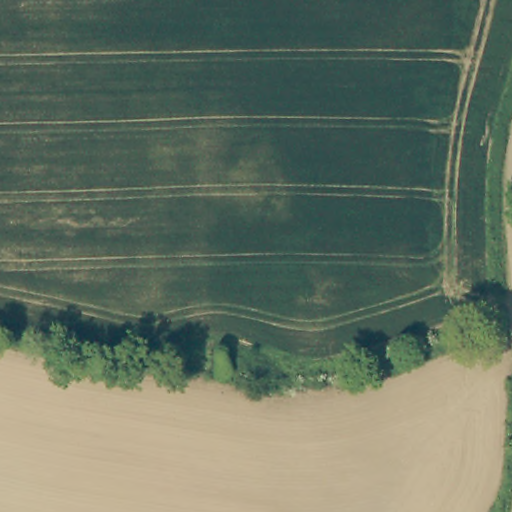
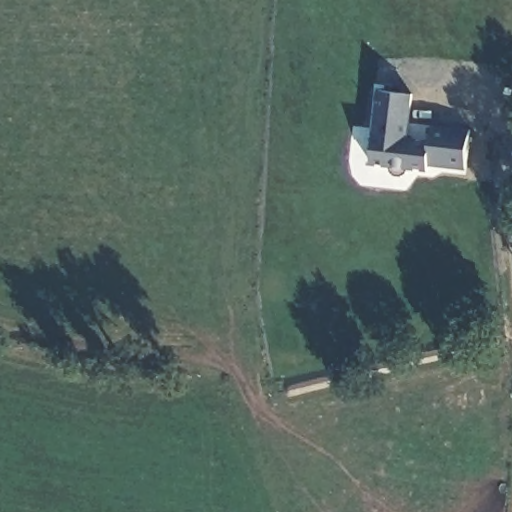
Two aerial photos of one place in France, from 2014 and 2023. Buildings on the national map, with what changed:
new [(411,140),(426,142),(429,126),(474,132),(468,170),(430,166),(429,171),(368,164),(376,89),(414,94),(411,140)]

